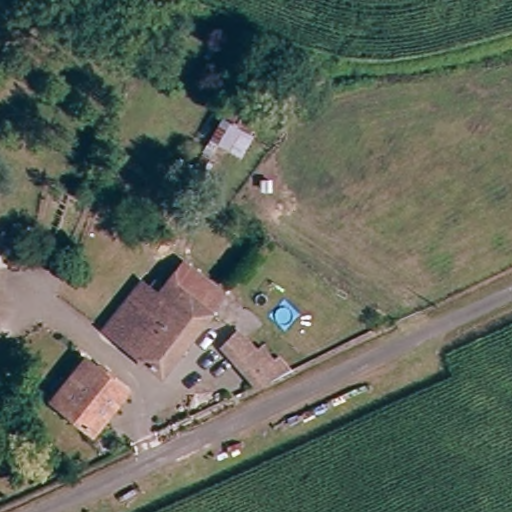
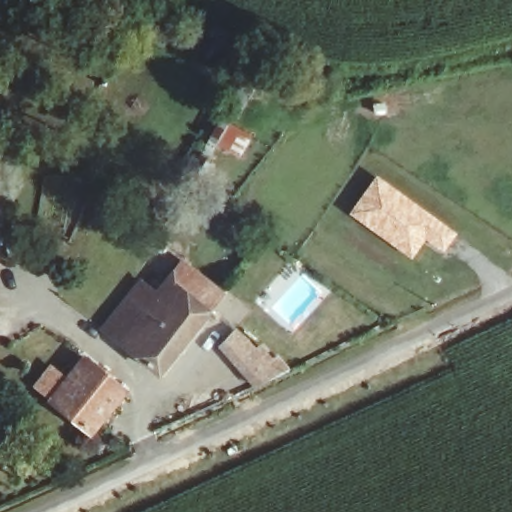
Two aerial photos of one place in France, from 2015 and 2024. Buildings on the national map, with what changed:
new [(376,175),(448,227),(437,240),(428,234),(411,258),(349,212),(376,175)]
unchanged [(174,278),(189,262),(228,293),(214,310),(174,278)]
unchanged [(214,310),(164,373),(124,342),(108,328),(133,297),(149,310),(174,278),(214,310)]
unchanged [(220,341),(236,323),(250,336),(269,355),(277,349),(289,366),(255,381),(220,341)]
unchanged [(49,400),(84,357),(126,390),(91,433),(49,400)]

